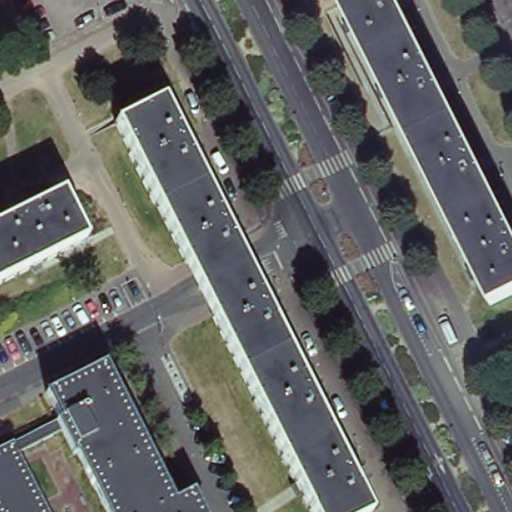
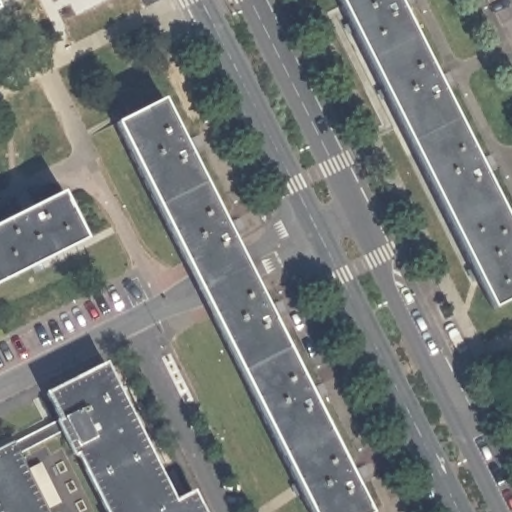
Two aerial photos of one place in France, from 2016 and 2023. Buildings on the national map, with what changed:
unchanged [(512,231),(512,294),(491,305),(338,0),(396,0),(512,231)]
unchanged [(310,512),(116,125),(163,99),(371,510),(368,512),(310,512)]
unchanged [(0,281),(0,222),(67,188),(90,236),(0,281)]
unchanged [(72,456),(60,433),(17,455),(46,512),(0,512),(0,450),(59,420),(46,395),(104,366),(175,503),(192,494),(201,512),(105,512),(76,455),(72,456)]

